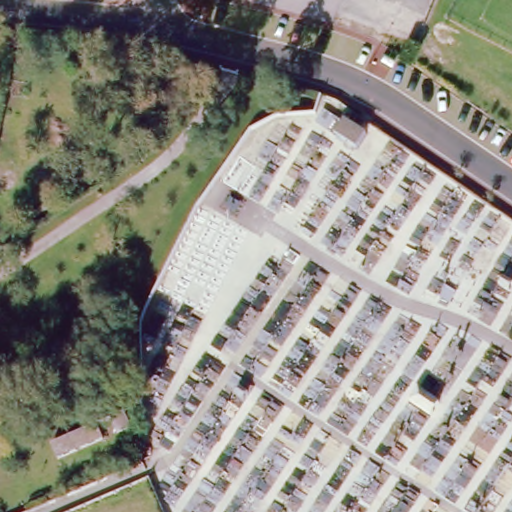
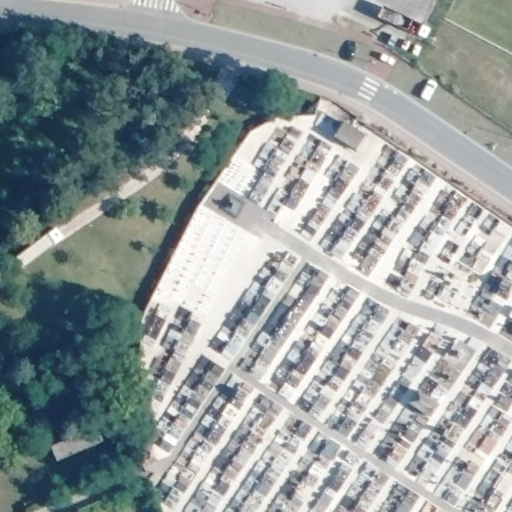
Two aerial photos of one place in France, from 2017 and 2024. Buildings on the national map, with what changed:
unchanged [(335,116),(327,127),(318,121),(325,110),(335,116)]
unchanged [(343,117),(365,130),(355,145),(334,131),(343,117)]
unchanged [(0,387),(0,380),(2,386),(0,387)]
unchanged [(125,413),(130,427),(107,437),(102,423),(125,413)]
unchanged [(100,440),(56,460),(50,446),(94,427),(100,440)]

